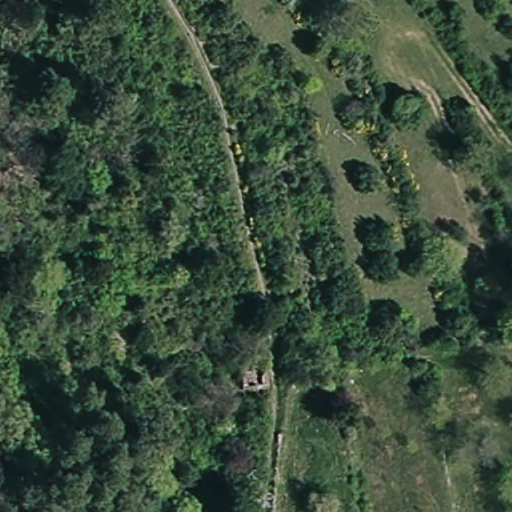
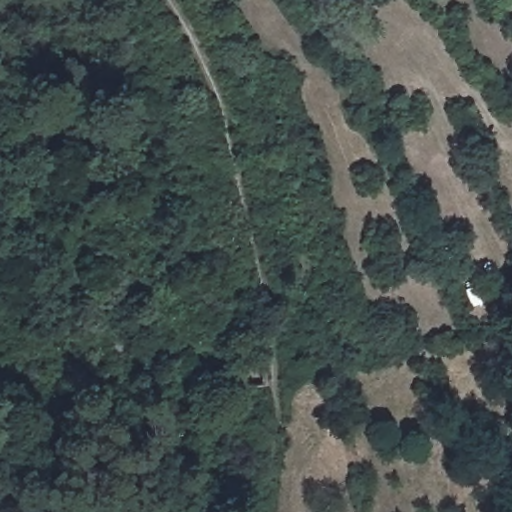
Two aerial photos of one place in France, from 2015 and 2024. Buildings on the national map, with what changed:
unchanged [(240,412),(238,393),(234,361),(234,360),(259,359),(261,387),(260,389),(256,410),(240,412)]

